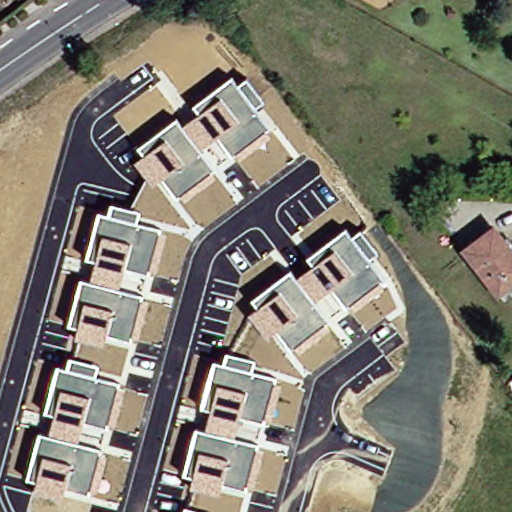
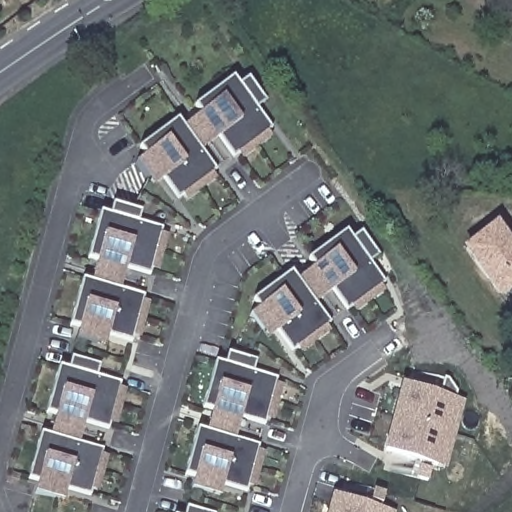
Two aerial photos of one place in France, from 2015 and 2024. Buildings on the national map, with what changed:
unchanged [(265,132),(269,137),(239,160),(235,155),(232,157),(217,136),(200,150),(215,170),(210,174),(214,180),(186,201),(181,195),(178,199),(163,178),(153,185),(135,161),(143,155),(137,148),(177,119),(182,126),(199,115),(193,107),(232,77),(237,85),(246,79),(264,103),(255,109),(270,128),(265,132)]
unchanged [(160,235),(166,236),(156,272),(149,270),(149,273),(125,267),(119,290),(143,296),(142,301),(149,303),(139,338),(132,336),(131,341),(106,335),(104,346),(74,339),(78,328),(68,325),(80,279),(91,281),(96,260),(86,258),(99,212),(109,215),(112,204),(140,211),(136,224),(160,230),(160,235)]
unchanged [(379,285),(384,290),(354,312),(351,307),(347,310),(332,291),(315,303),(329,322),(325,325),(329,330),(299,354),(295,348),(292,352),(277,332),(267,340),(249,315),(258,307),(253,300),(292,270),(297,278),(312,267),(306,260),(346,230),(353,238),(360,232),(377,255),(368,262),(382,280),(379,285)]
unchanged [(512,256),(512,289),(498,299),(464,255),(494,232),(512,256)]
unchanged [(275,385),(281,385),(273,422),(265,420),(264,424),(240,418),(234,440),(257,445),(256,451),(263,453),(254,488),(249,487),(246,492),(222,486),(219,496),(189,488),(192,480),(183,477),(196,428),(204,431),(210,410),(202,409),(215,362),(224,364),(227,353),(255,361),(253,372),(275,378),(275,385)]
unchanged [(117,388),(123,390),(114,426),(109,425),(107,430),(83,423),(76,445),(104,453),(93,497),(65,490),(61,500),(34,492),(37,482),(27,480),(39,433),(48,435),(53,415),(44,411),(57,366),(66,368),(68,358),(98,366),(95,377),(119,383),(117,388)]
new [(468,398),(449,467),(384,450),(403,381),(468,398)]
new [(398,511),(398,512),(329,512),(333,493),(398,511)]
unchanged [(204,512),(186,512),(187,507),(204,512)]

